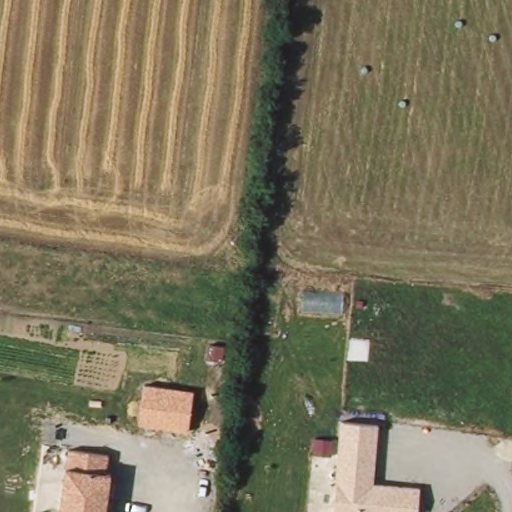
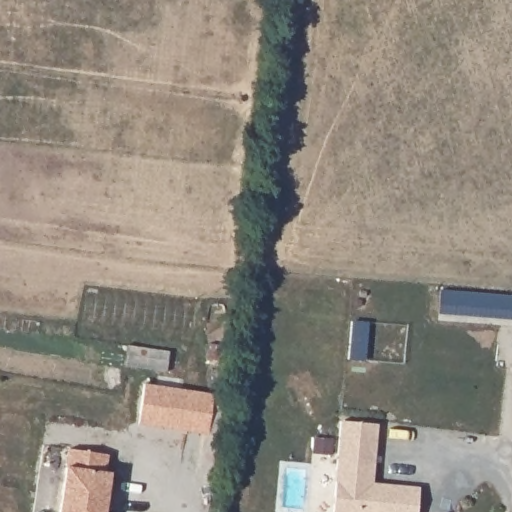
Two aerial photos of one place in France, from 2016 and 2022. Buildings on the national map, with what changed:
new [(438,314),(440,291),(512,297),(512,320),(438,314)]
unchanged [(142,384),(194,390),(188,431),(137,424),(142,384)]
unchanged [(378,424),(374,482),(417,486),(416,512),(332,512),(339,421),(378,424)]
unchanged [(69,449),(108,454),(105,472),(111,473),(105,512),(60,512),(65,467),(69,449)]

